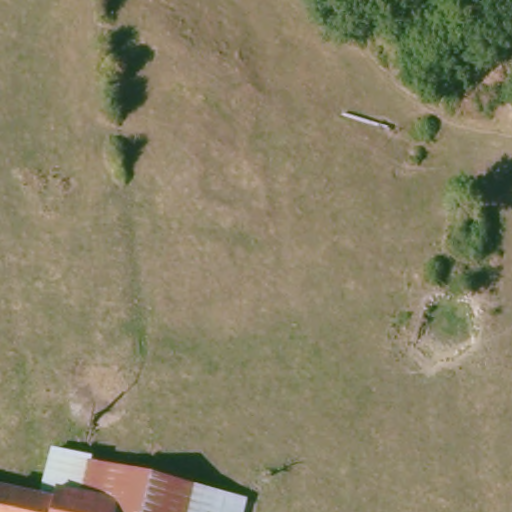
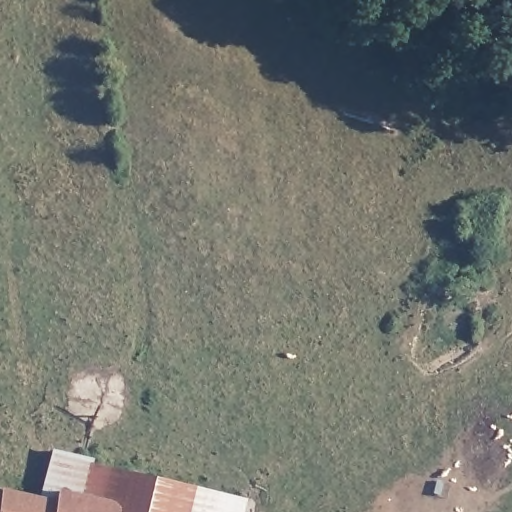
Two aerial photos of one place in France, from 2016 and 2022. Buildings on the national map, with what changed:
unchanged [(44,445),(50,446),(85,454),(83,462),(167,481),(170,482),(163,512),(0,512),(0,490),(32,497),(44,445)]
unchanged [(235,496),(231,512),(163,512),(170,482),(235,496)]

